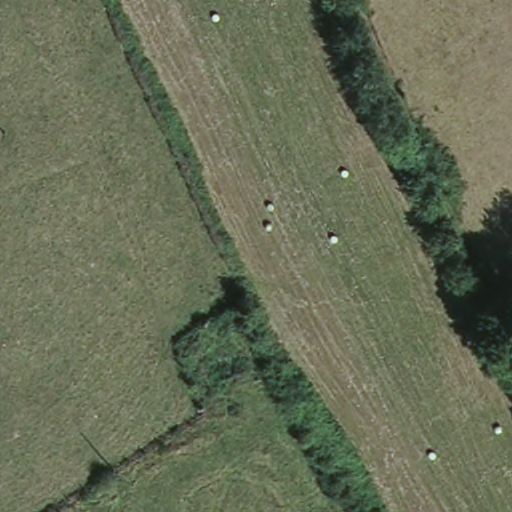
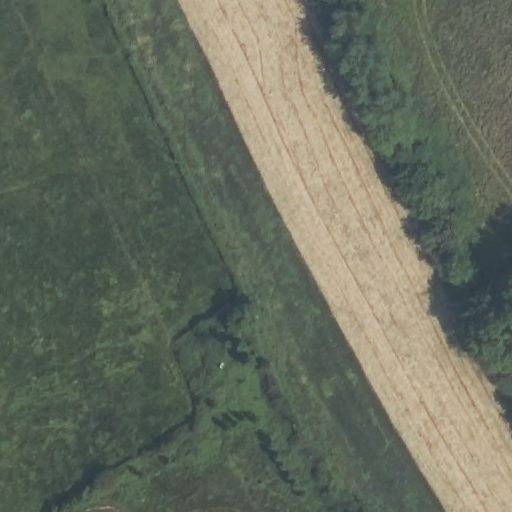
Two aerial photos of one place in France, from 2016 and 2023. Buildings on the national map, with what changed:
[]

